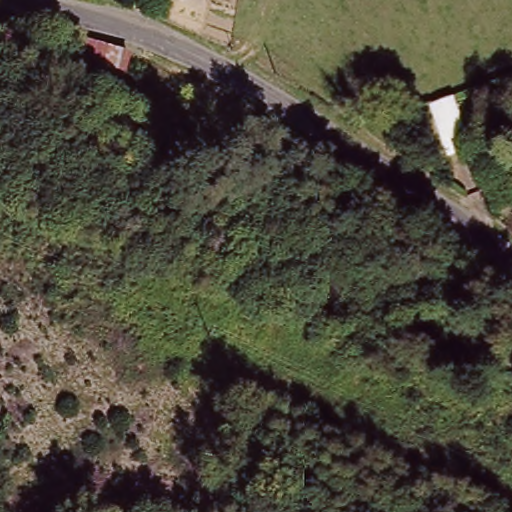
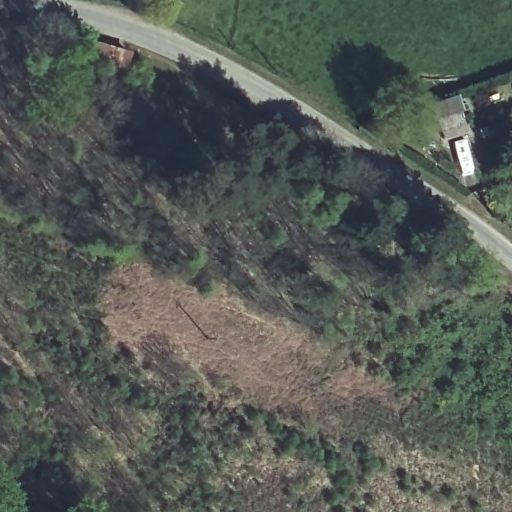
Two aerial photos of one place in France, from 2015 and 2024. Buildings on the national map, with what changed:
unchanged [(105,72),(79,64),(87,38),(124,50),(116,73),(105,72)]
unchanged [(472,146),(449,155),(432,105),(454,96),(472,146)]

